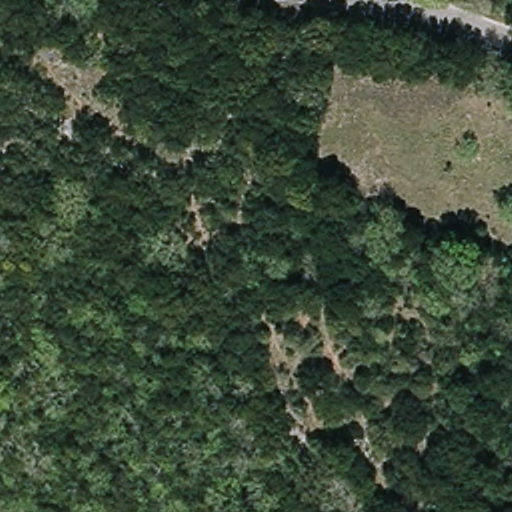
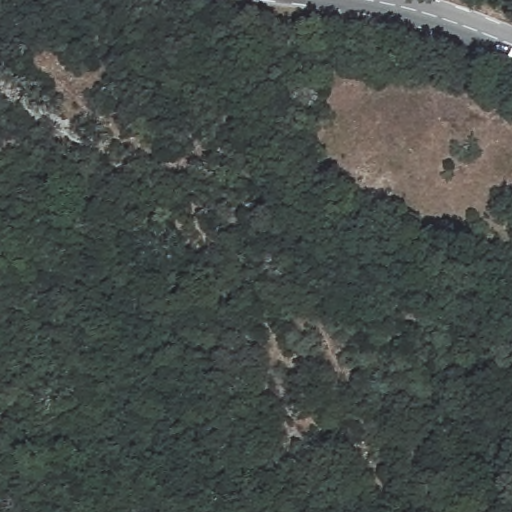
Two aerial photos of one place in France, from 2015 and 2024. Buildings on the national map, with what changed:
[]

